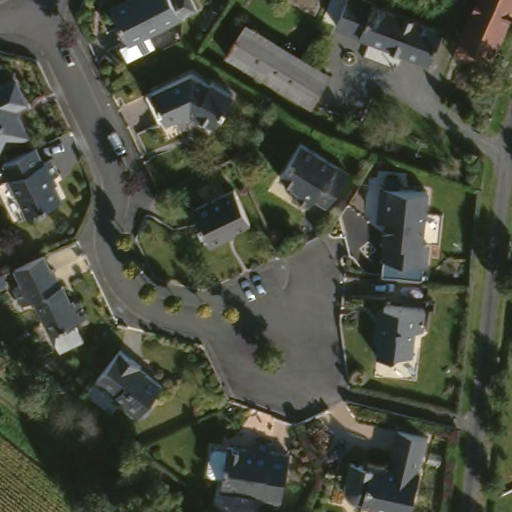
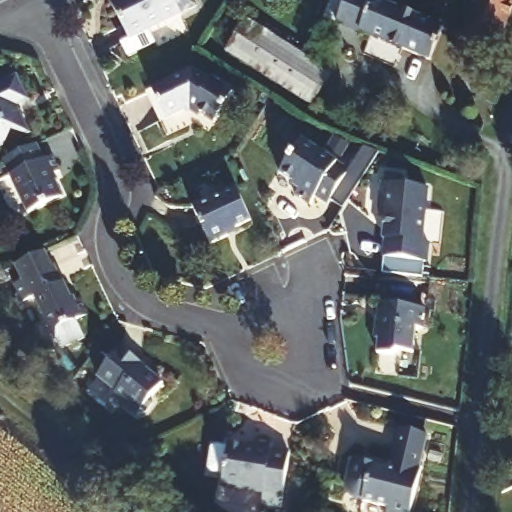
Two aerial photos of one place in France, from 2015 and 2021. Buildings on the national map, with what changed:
unchanged [(115,0),(189,0),(192,8),(175,16),(124,40),(107,4),(115,0)]
unchanged [(447,32),(434,65),(330,21),(339,0),(370,0),(447,32)]
unchanged [(490,64),(456,50),(461,37),(477,0),(512,0),(512,11),(496,50),(490,64)]
unchanged [(331,71),(311,105),(226,53),(246,20),(331,71)]
unchanged [(208,83),(210,80),(232,95),(211,125),(187,110),(163,121),(149,90),(191,71),(208,83)]
unchanged [(19,78),(27,97),(16,102),(29,131),(0,144),(0,87),(19,78)]
unchanged [(57,170),(51,175),(61,196),(25,213),(7,175),(10,173),(2,156),(35,140),(43,157),(50,154),(57,170)]
unchanged [(350,172),(328,205),(316,197),(311,205),(296,195),(301,187),(281,174),(302,141),(350,172)]
unchanged [(381,259),(383,240),(380,239),(383,211),(379,211),(382,187),(427,193),(422,243),(427,244),(425,263),(381,259)]
unchanged [(194,208),(237,188),(252,220),(227,231),(228,234),(210,242),(194,208)]
unchanged [(74,306),(81,303),(87,318),(77,323),(84,339),(62,349),(40,300),(26,306),(17,285),(22,282),(15,268),(29,261),(47,253),(54,268),(57,267),(74,306)]
unchanged [(426,310),(423,330),(417,329),(415,354),(401,353),(394,358),(380,357),(381,339),(375,338),(377,324),(383,325),(386,306),(426,310)]
unchanged [(122,348),(143,365),(141,367),(162,384),(151,399),(152,406),(146,416),(137,414),(135,417),(120,404),(123,398),(99,378),(122,348)]
unchanged [(372,501),(363,498),(354,494),(350,489),(350,481),(351,474),(353,461),(355,457),(387,467),(391,465),(401,429),(427,436),(419,470),(422,472),(412,512),(388,512),(390,507),(372,501)]
unchanged [(271,451),(290,453),(282,508),(262,505),(263,494),(222,488),(228,446),(254,449),(255,439),(272,442),(271,451)]

